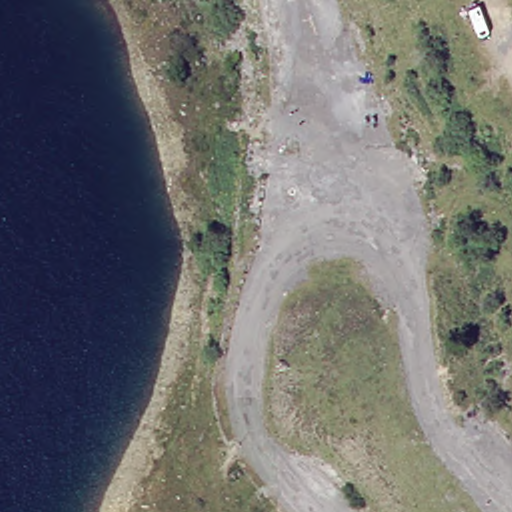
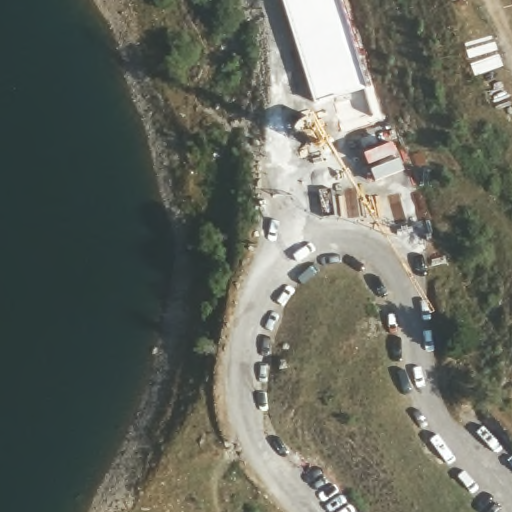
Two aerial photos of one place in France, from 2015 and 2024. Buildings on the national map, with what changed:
new [(361,89),(312,103),(281,0),(334,0),(337,13),(361,89)]

